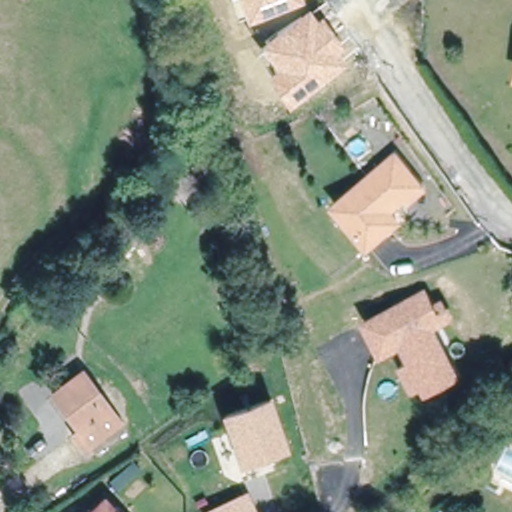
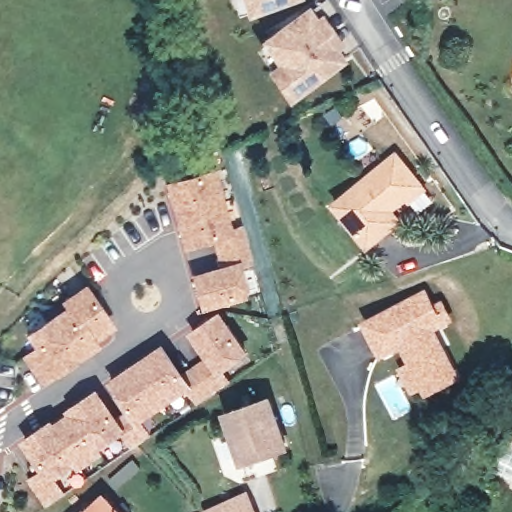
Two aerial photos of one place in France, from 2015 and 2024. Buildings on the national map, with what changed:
unchanged [(246,15),(241,0),(295,0),(246,15)]
unchanged [(307,5),(316,16),(321,13),(342,45),(336,51),(343,61),(286,101),(264,71),(275,63),(259,38),(307,5)]
unchanged [(392,215),(363,241),(328,201),(388,149),(413,178),(416,182),(404,193),(401,189),(383,204),(392,215)]
new [(190,272),(219,264),(212,238),(181,248),(164,182),(216,167),(232,227),(244,223),(253,264),(242,268),(250,299),(200,311),(190,272)]
new [(115,327),(96,342),(100,347),(53,377),(41,386),(21,356),(33,348),(24,334),(62,306),(59,301),(85,284),(115,327)]
unchanged [(434,391),(425,396),(415,377),(424,372),(412,351),(392,362),(375,332),(433,301),(442,318),(450,314),(457,327),(449,331),(440,336),(462,375),(466,383),(438,398),(434,391)]
new [(39,468),(20,440),(52,418),(55,421),(67,413),(64,409),(99,387),(118,417),(127,410),(107,380),(163,342),(184,371),(204,356),(188,333),(221,310),(249,353),(224,371),(229,380),(196,404),(187,390),(141,421),(150,433),(131,447),(122,433),(101,448),(105,453),(80,471),(74,464),(56,477),(66,491),(46,505),(28,478),(39,468)]
demolished [(84,370),(122,420),(90,444),(53,394),(84,370)]
unchanged [(269,399),(285,445),(242,461),(225,415),(269,399)]
unchanged [(254,512),(208,512),(246,495),(254,512)]
unchanged [(118,512),(92,512),(105,499),(118,512)]

